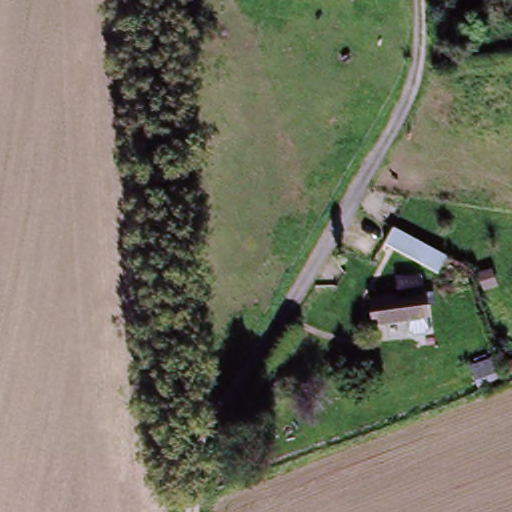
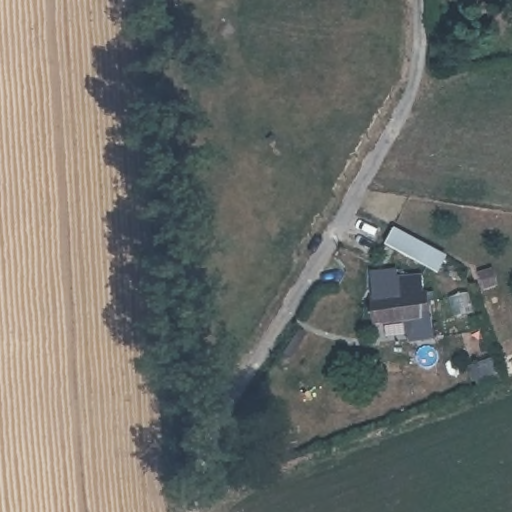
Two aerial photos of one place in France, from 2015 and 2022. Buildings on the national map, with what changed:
unchanged [(395,222),(447,251),(438,268),(386,240),(395,222)]
unchanged [(428,296),(429,323),(377,326),(376,298),(428,296)]

